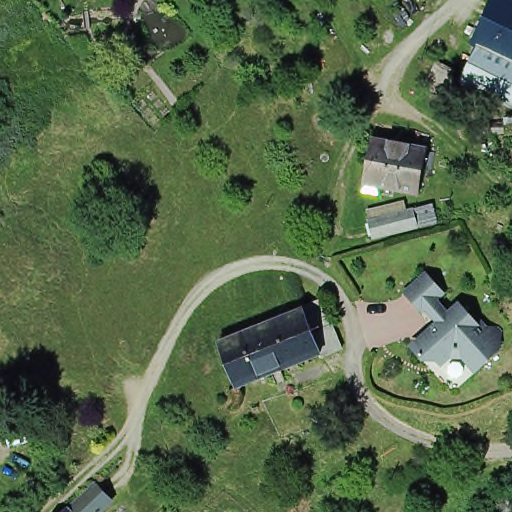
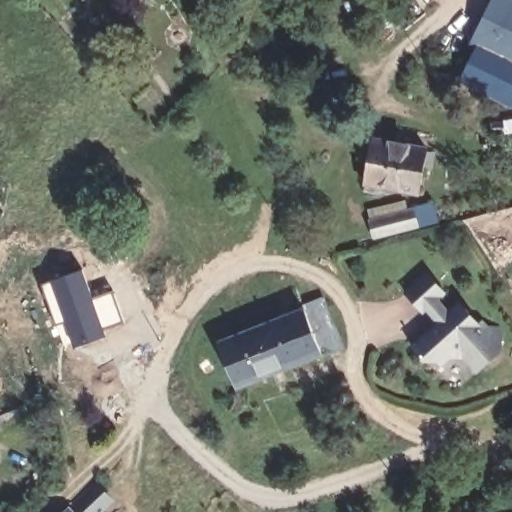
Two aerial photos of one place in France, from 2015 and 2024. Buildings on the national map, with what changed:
unchanged [(464,78),(481,44),(473,40),(494,0),(512,0),(512,102),(464,78)]
unchanged [(366,193),(368,184),(376,138),(432,148),(424,195),(384,187),(383,197),(366,193)]
unchanged [(368,214),(417,203),(436,198),(440,213),(420,217),(373,229),(368,214)]
new [(81,269),(109,335),(74,349),(54,281),(81,269)]
unchanged [(451,292),(429,312),(413,294),(434,273),(451,292)]
unchanged [(331,306),(347,351),(324,359),(323,355),(306,307),(305,306),(304,303),(326,295),(331,306)]
unchanged [(422,349),(438,333),(437,331),(445,323),(449,323),(449,315),(457,315),(458,312),(459,309),(462,307),(464,306),(465,306),(468,305),(471,306),(473,308),(475,310),(476,311),(477,313),(477,316),(485,324),(486,324),(487,324),(494,324),(506,324),(509,329),(509,337),(509,340),(509,348),(489,367),(474,350),(457,350),(447,360),(433,360),(422,349)]
unchanged [(323,355),(306,362),(294,338),(271,345),(262,324),(306,307),(323,355)]
unchanged [(306,362),(285,370),(289,379),(289,380),(276,386),(271,376),(238,390),(221,350),(218,341),(262,324),(271,345),(294,338),(306,362)]
unchanged [(98,489),(113,505),(106,512),(72,512),(98,489)]

